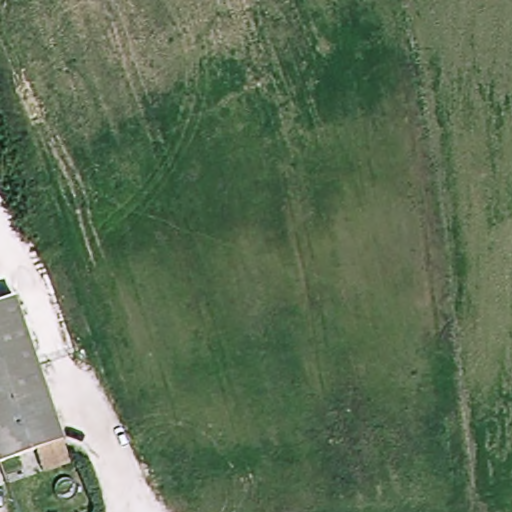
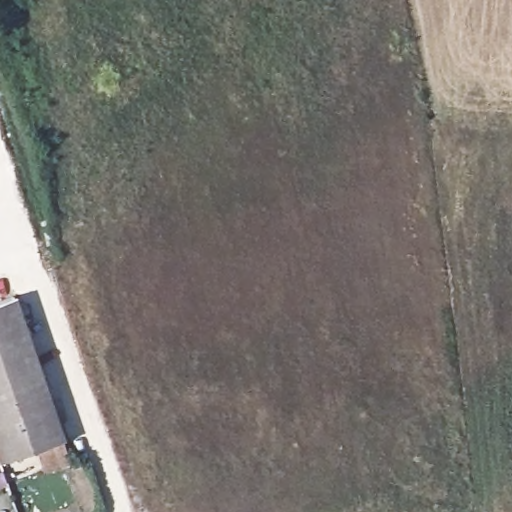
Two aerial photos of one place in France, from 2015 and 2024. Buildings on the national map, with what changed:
unchanged [(40,451),(5,465),(0,450),(0,304),(15,299),(68,442),(75,462),(48,472),(40,451)]

